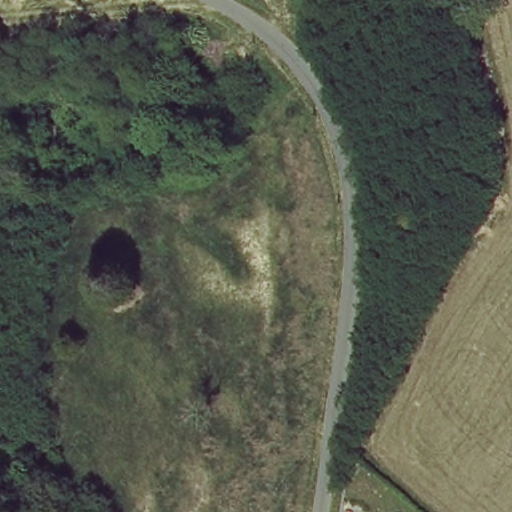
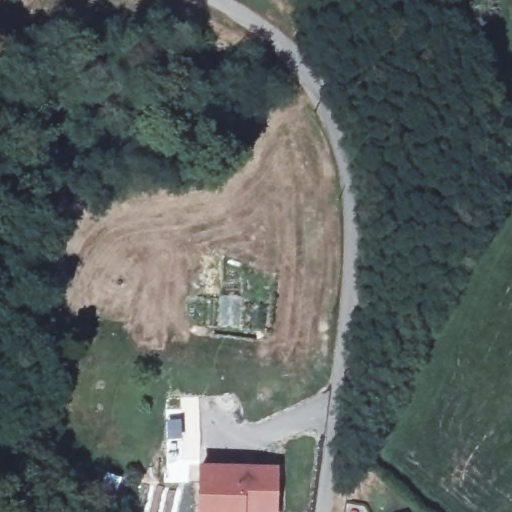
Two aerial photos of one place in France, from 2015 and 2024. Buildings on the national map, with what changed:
new [(277,467),(276,512),(199,512),(200,466),(277,467)]

